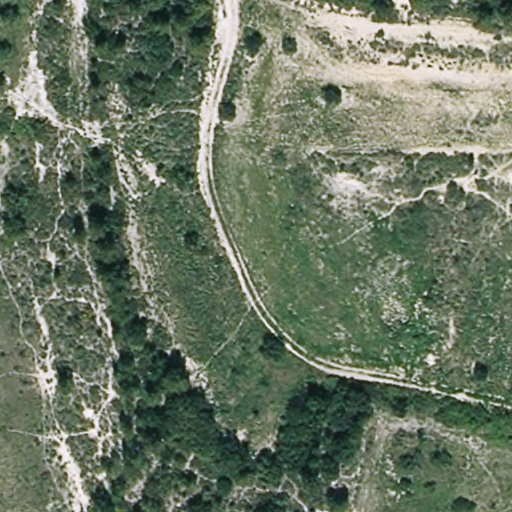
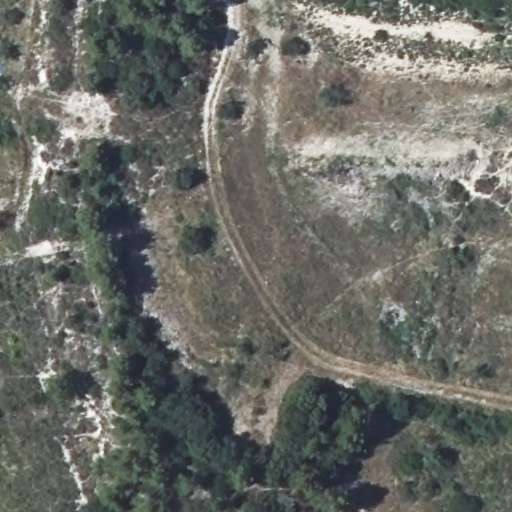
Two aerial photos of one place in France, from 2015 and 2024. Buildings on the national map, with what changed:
[]

